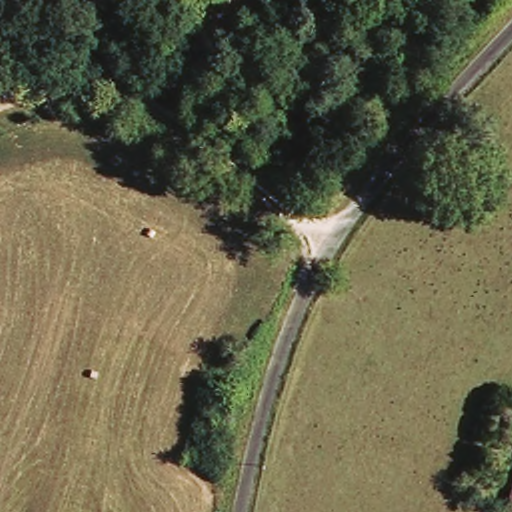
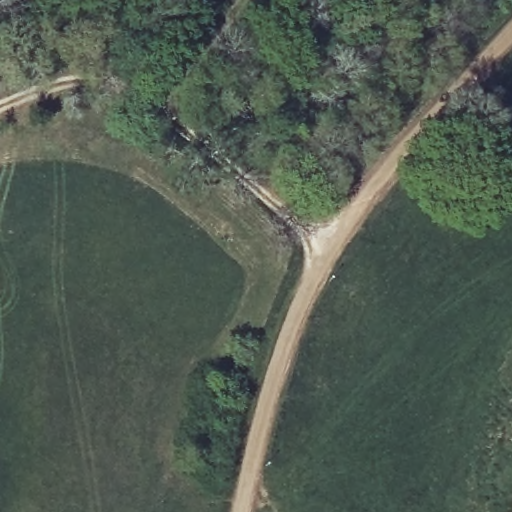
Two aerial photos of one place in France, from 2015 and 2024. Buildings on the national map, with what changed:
unchanged [(512,502),(512,512),(509,512),(512,502)]

